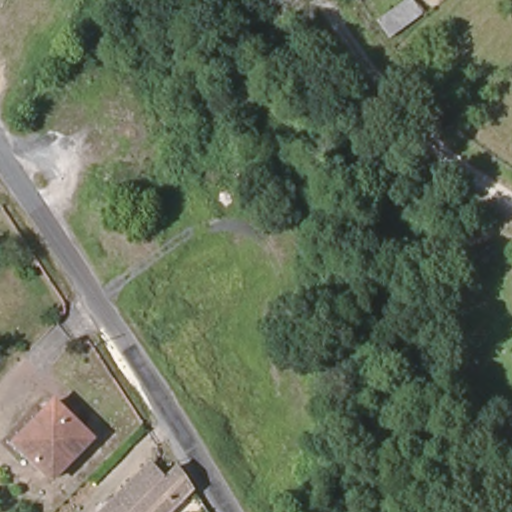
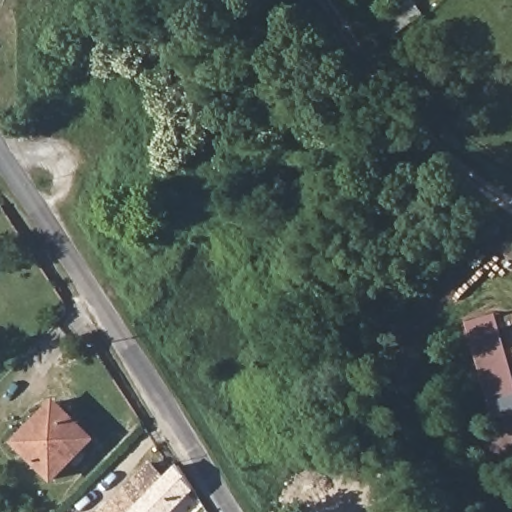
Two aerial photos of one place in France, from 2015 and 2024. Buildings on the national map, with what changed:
unchanged [(394,32),(381,14),(401,0),(419,0),(425,9),(394,32)]
new [(466,323),(494,315),(512,366),(512,442),(502,447),(493,430),(498,428),(466,323)]
unchanged [(15,440),(57,395),(97,432),(56,479),(15,440)]
unchanged [(176,512),(111,512),(154,471),(172,485),(184,473),(197,492),(176,512)]
unchanged [(205,510),(206,512),(203,512),(205,510)]

